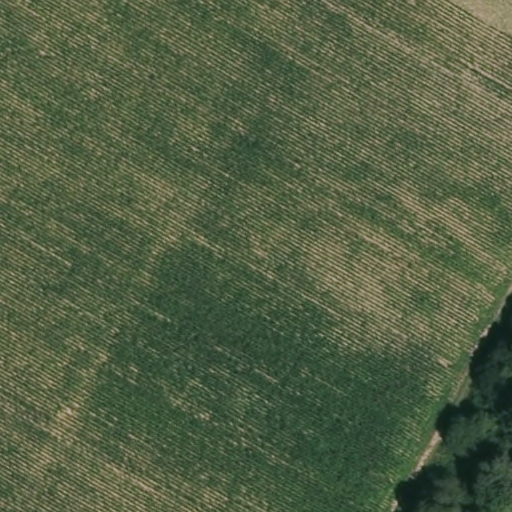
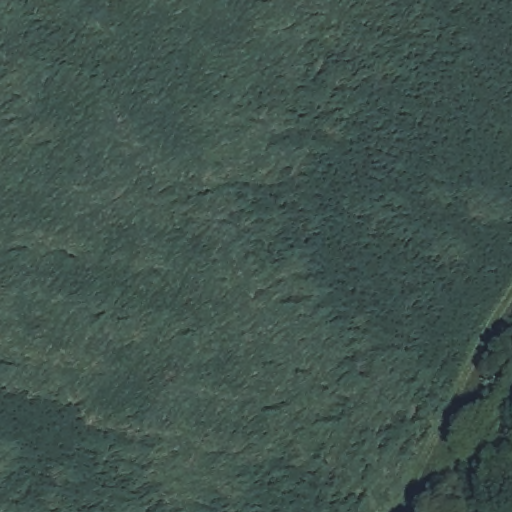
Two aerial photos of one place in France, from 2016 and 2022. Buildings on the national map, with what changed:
[]

